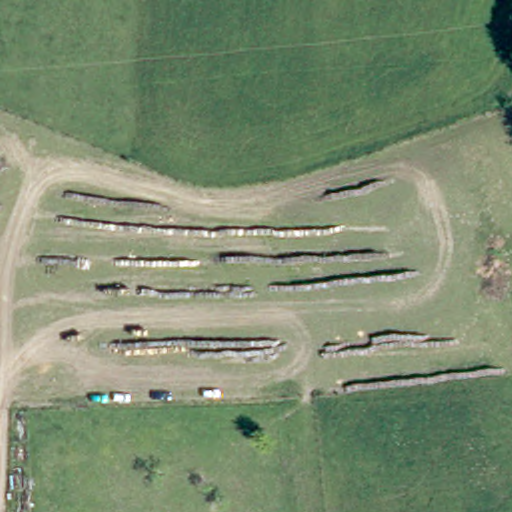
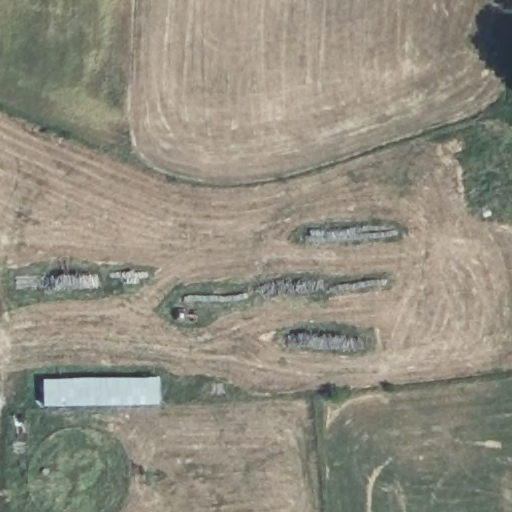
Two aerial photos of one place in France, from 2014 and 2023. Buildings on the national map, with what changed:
new [(162,404),(46,404),(47,377),(161,376),(162,404)]

